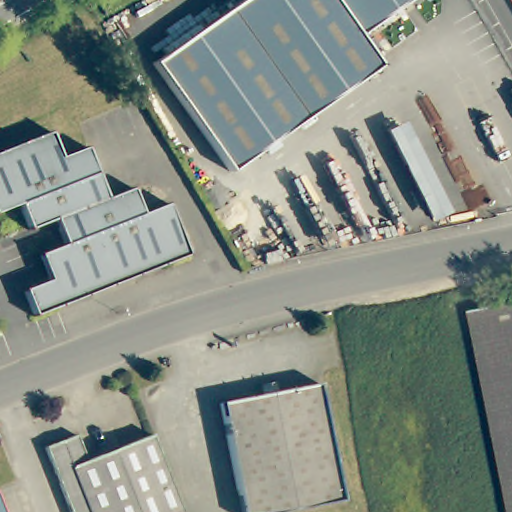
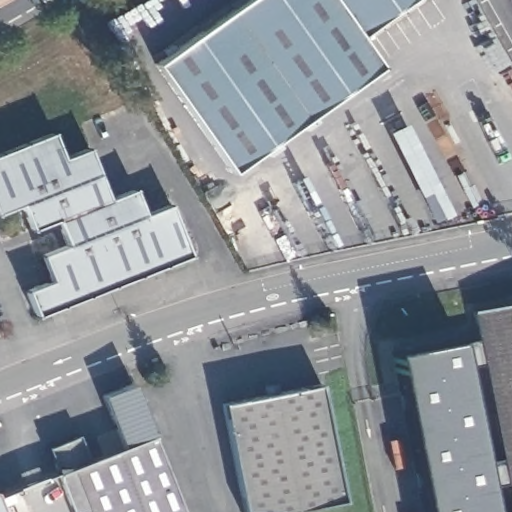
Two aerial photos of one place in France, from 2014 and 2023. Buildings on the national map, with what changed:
unchanged [(381,63),(231,169),(155,60),(239,0),(407,0),(360,34),(381,63)]
unchanged [(404,124),(450,213),(432,223),(387,133),(404,124)]
unchanged [(88,145),(108,195),(133,186),(143,211),(169,200),(189,252),(36,312),(26,287),(51,277),(41,251),(66,241),(56,216),(31,226),(21,201),(0,209),(0,149),(51,129),(61,155),(88,145)]
unchanged [(477,311),(512,304),(512,491),(477,311)]
new [(396,354),(461,340),(462,344),(482,339),(487,363),(467,367),(485,465),(506,462),(510,482),(488,486),(492,512),(426,512),(396,354)]
unchanged [(344,498),(273,512),(243,512),(222,400),(264,392),(262,382),(276,379),(279,389),(320,381),(344,498)]
unchanged [(185,512),(92,512),(91,511),(87,512),(74,512),(46,444),(78,431),(89,457),(154,431),(185,512)]
unchanged [(0,508),(2,512),(0,512),(0,508)]

